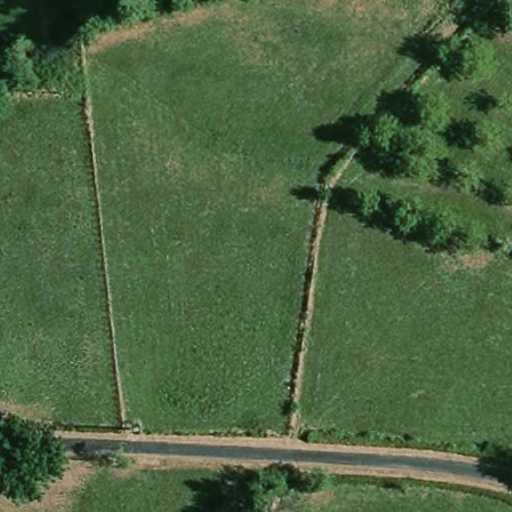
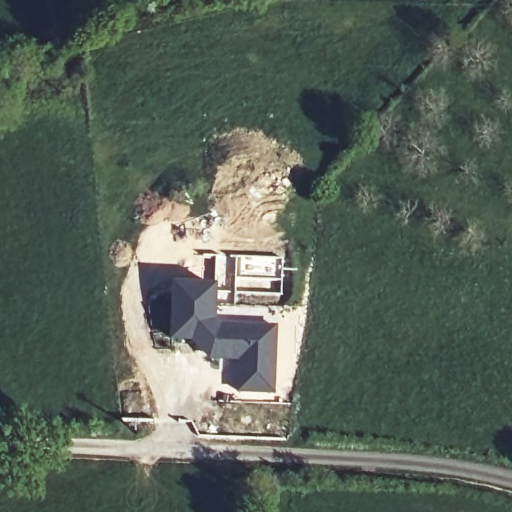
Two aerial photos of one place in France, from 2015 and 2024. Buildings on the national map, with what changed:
new [(173,283),(219,284),(218,325),(279,327),(276,394),(238,393),(238,362),(210,361),(194,342),(172,342),(173,283)]

